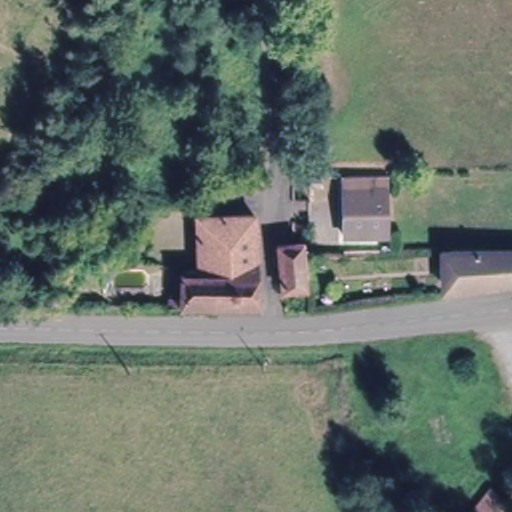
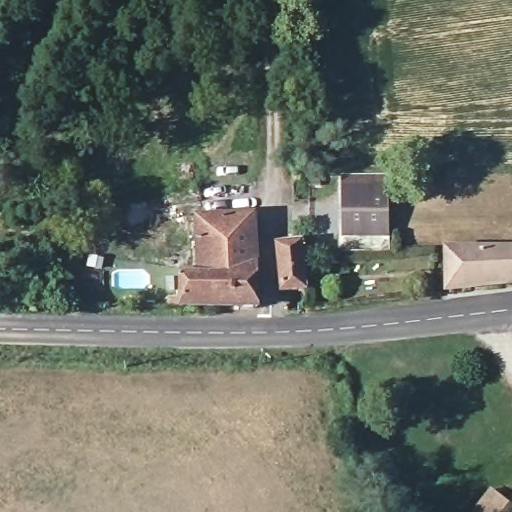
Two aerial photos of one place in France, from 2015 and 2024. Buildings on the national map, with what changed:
unchanged [(388,245),(342,245),(341,200),(341,185),(369,184),(369,200),(386,200),(388,245)]
unchanged [(183,308),(183,278),(201,276),(199,220),(257,220),(261,307),(183,308)]
unchanged [(306,257),(308,295),(284,298),(280,250),(306,247),(306,257)]
unchanged [(507,287),(506,294),(443,296),(443,255),(512,254),(512,287),(507,287)]
unchanged [(490,499),(507,512),(480,512),(490,499)]

